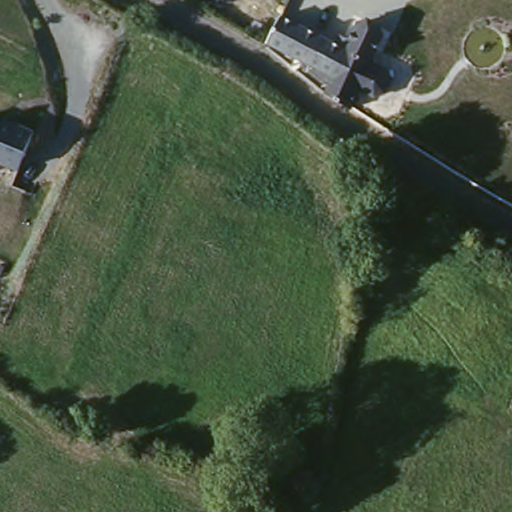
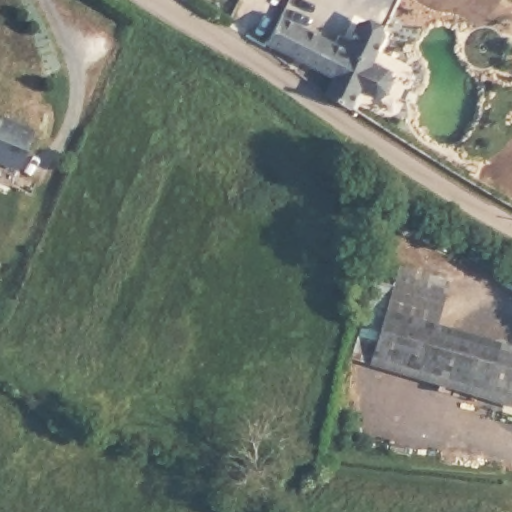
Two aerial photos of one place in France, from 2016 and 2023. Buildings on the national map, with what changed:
unchanged [(394,80),(387,94),(377,98),(360,91),(352,111),(325,96),(334,78),(266,44),(279,17),(347,49),(359,24),(384,36),(373,63),(389,70),(394,80)]
unchanged [(36,132),(21,170),(0,160),(0,116),(36,132)]
new [(437,331),(512,354),(512,418),(368,371),(398,274),(448,285),(437,331)]

